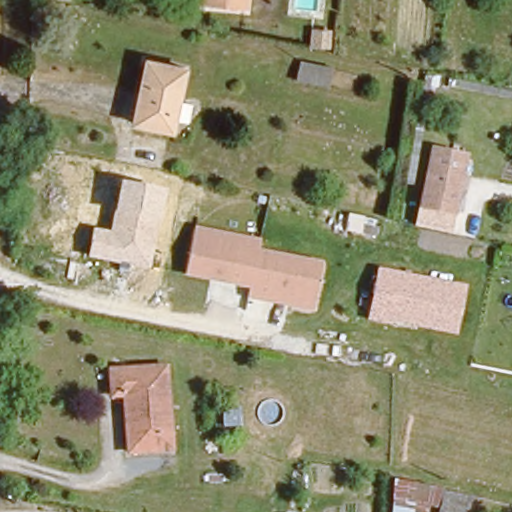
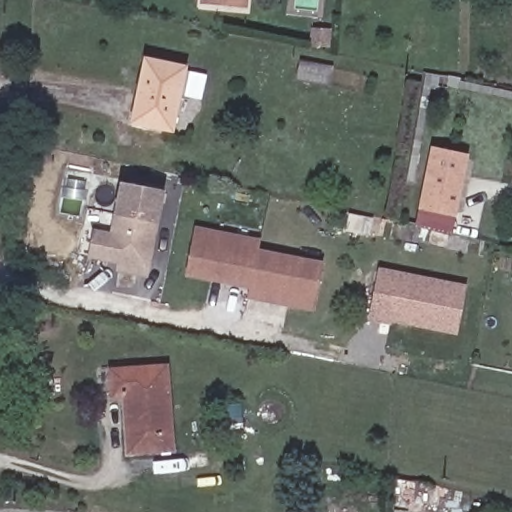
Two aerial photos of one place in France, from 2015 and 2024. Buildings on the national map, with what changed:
unchanged [(211,0),(242,0),(241,4),(211,0)]
unchanged [(131,118),(144,58),(182,66),(169,128),(131,118)]
unchanged [(337,86),(304,79),(307,61),(340,69),(337,86)]
unchanged [(463,154),(452,209),(419,203),(432,148),(463,154)]
unchanged [(158,221),(149,270),(87,259),(92,230),(109,232),(113,215),(119,182),(164,191),(158,221)]
unchanged [(312,312),(247,299),(251,289),(187,275),(197,226),(261,241),(259,249),(320,262),(312,312)]
unchanged [(456,335),(390,322),(389,326),(366,321),(378,268),(466,285),(456,335)]
unchanged [(121,402),(121,372),(167,371),(168,451),(131,452),(129,402),(121,402)]
unchanged [(474,496),(470,512),(426,512),(416,510),(416,512),(388,512),(391,477),(474,496)]

